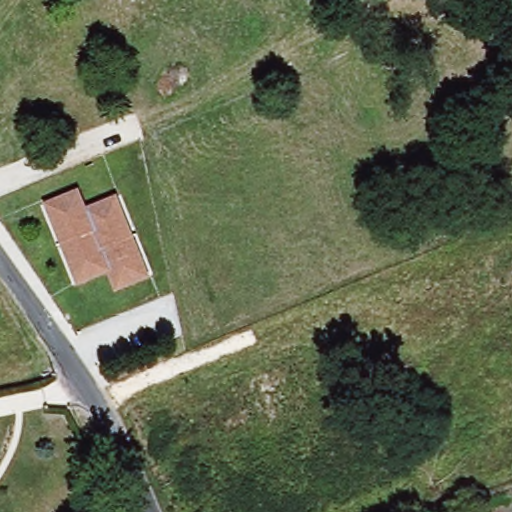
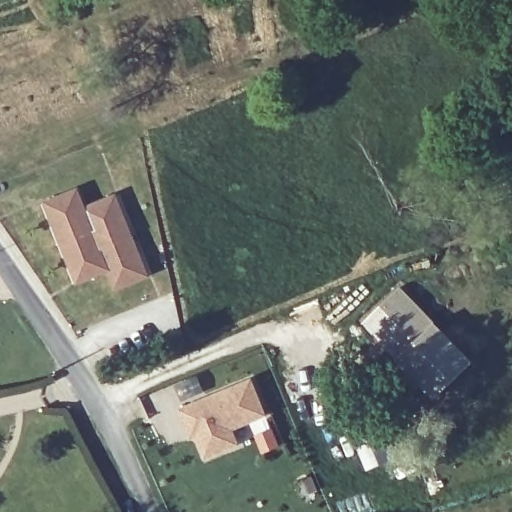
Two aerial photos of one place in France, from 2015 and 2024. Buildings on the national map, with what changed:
unchanged [(86,210),(116,199),(149,280),(117,293),(108,273),(78,286),(44,205),(77,191),(86,210)]
new [(398,286),(474,361),(433,399),(360,322),(398,286)]
new [(238,443),(206,455),(193,422),(189,424),(182,408),(253,380),(267,413),(273,429),(238,443)]

